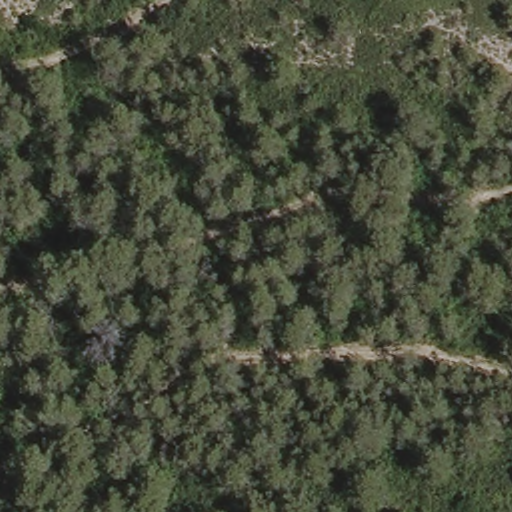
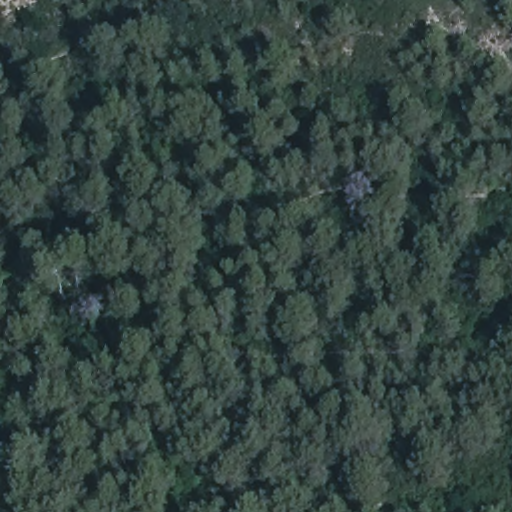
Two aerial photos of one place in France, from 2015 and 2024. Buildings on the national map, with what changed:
[]

